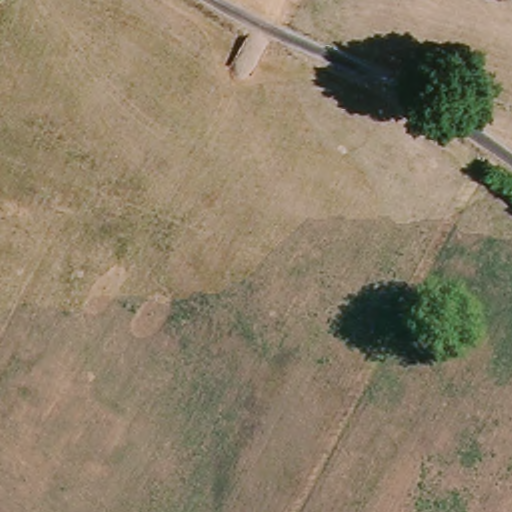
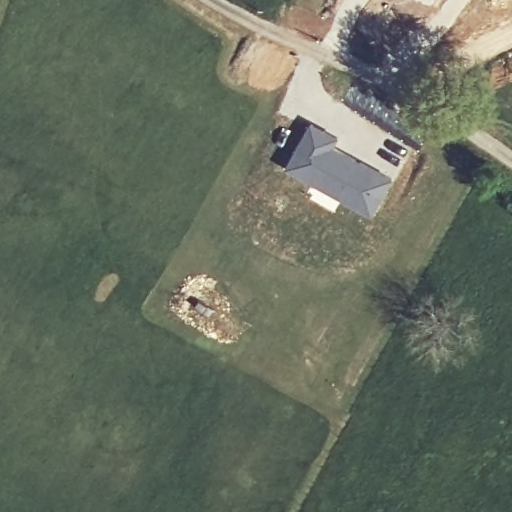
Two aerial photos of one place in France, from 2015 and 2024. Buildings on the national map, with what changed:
new [(310,122),(338,138),(333,145),(392,181),(370,217),(338,198),(337,200),(283,169),(310,122)]

